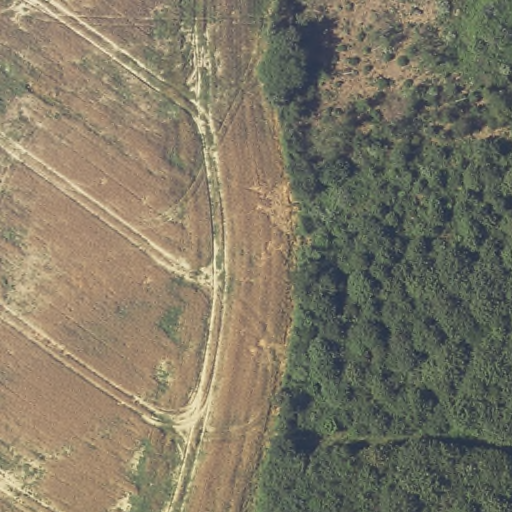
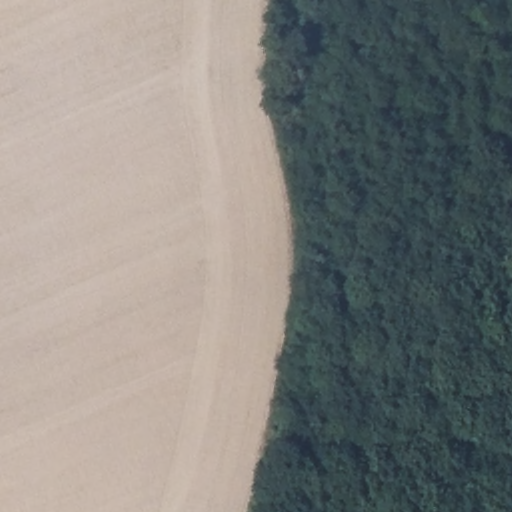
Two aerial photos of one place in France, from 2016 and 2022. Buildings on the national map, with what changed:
[]

